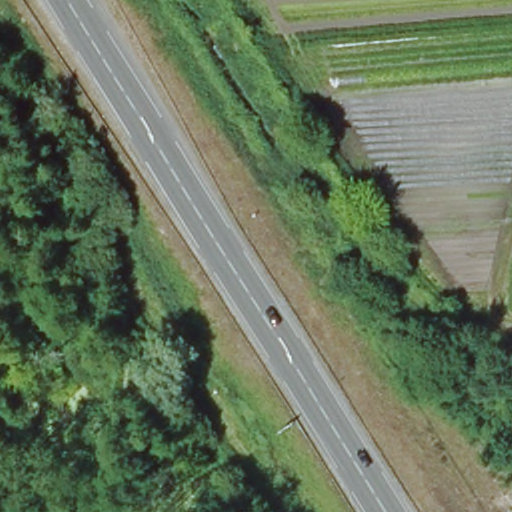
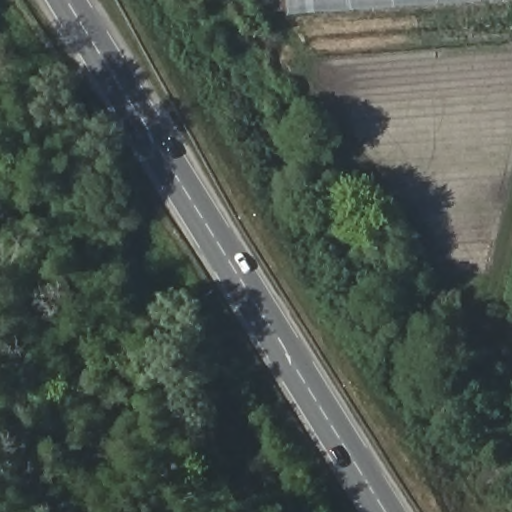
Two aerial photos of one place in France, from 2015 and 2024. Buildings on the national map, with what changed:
new [(287,0),(477,0),(288,13),(287,0)]

